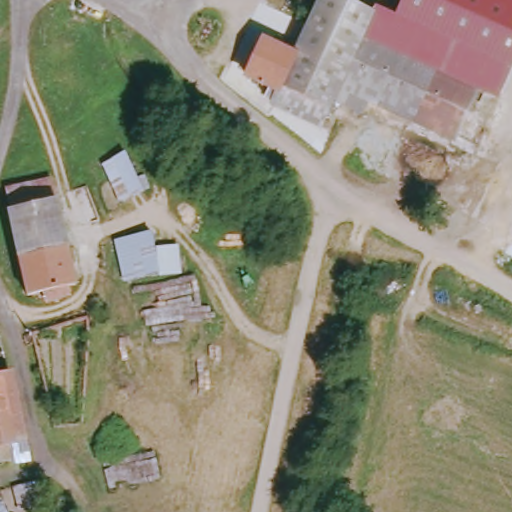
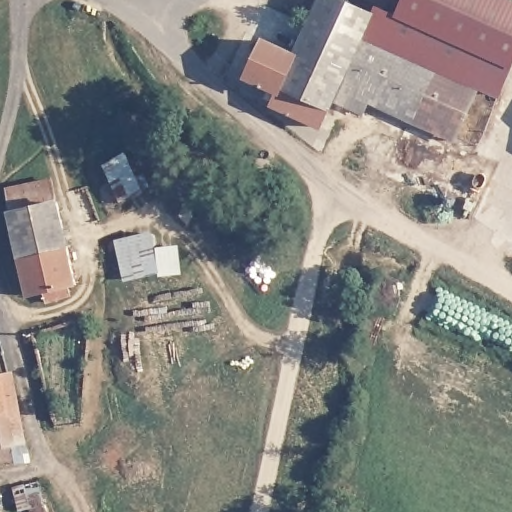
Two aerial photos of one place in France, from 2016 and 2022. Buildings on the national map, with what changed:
unchanged [(369,109),(363,122),(332,108),(319,133),(273,111),(322,0),(328,0),(369,18),(388,26),(378,50),(475,90),(451,145),(369,109)]
unchanged [(396,16),(403,0),(512,0),(512,66),(498,99),(475,90),(378,50),(388,26),(374,20),(378,8),(396,16)]
unchanged [(280,96),(243,79),(263,39),(298,55),(280,96)]
unchanged [(114,205),(96,165),(120,156),(136,193),(114,205)]
unchanged [(45,306),(43,295),(25,299),(5,208),(1,193),(50,181),(53,199),(75,289),(66,291),(68,301),(45,306)]
unchanged [(121,280),(117,238),(150,236),(153,277),(121,280)]
unchanged [(22,452),(28,467),(0,469),(0,381),(8,381),(22,452)]
unchanged [(0,509),(2,512),(0,512),(0,509)]

